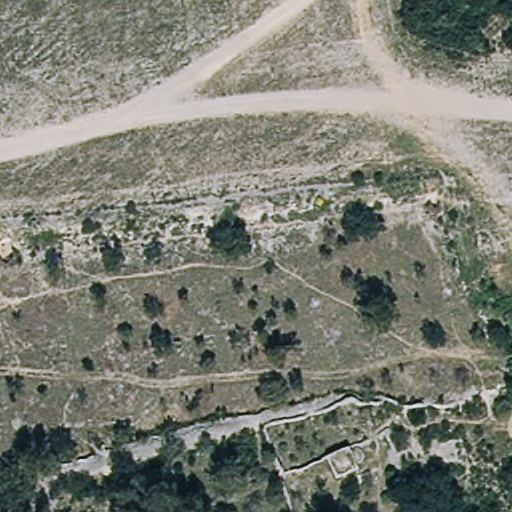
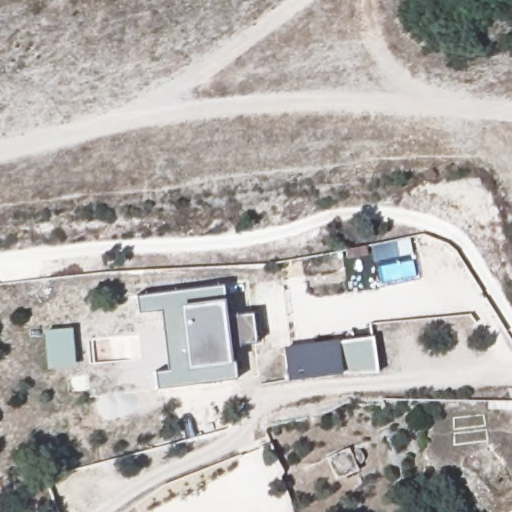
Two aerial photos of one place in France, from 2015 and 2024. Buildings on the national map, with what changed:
new [(225,303),(222,305),(224,316),(251,313),(255,344),(227,346),(228,362),(233,362),(235,380),(156,389),(153,372),(167,370),(160,309),(137,311),(135,296),(221,285),(225,303)]
new [(340,373),(285,381),(282,347),(336,340),(340,373)]
unchanged [(351,450),(356,473),(336,481),(330,455),(351,450)]
new [(512,512),(510,512),(512,510),(512,512)]

